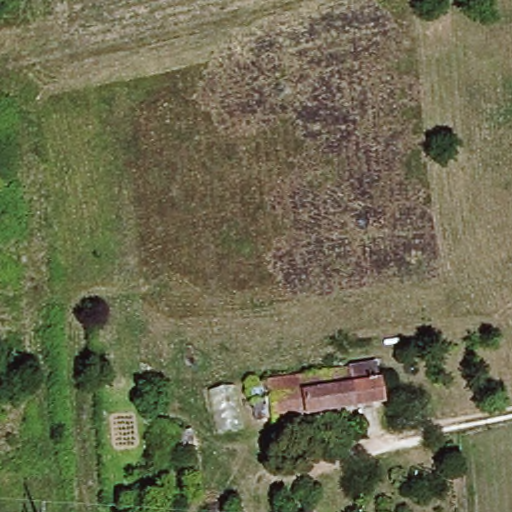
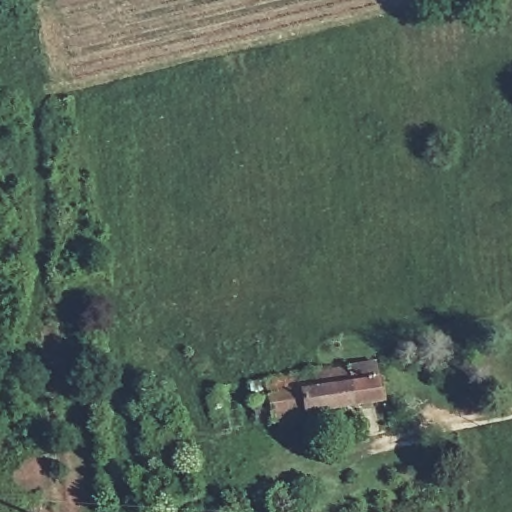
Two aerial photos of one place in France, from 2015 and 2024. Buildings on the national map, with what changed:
unchanged [(250,385),(264,382),(349,367),(350,370),(376,365),(382,402),(307,415),(308,419),(272,425),(270,416),(256,419),(250,385)]

